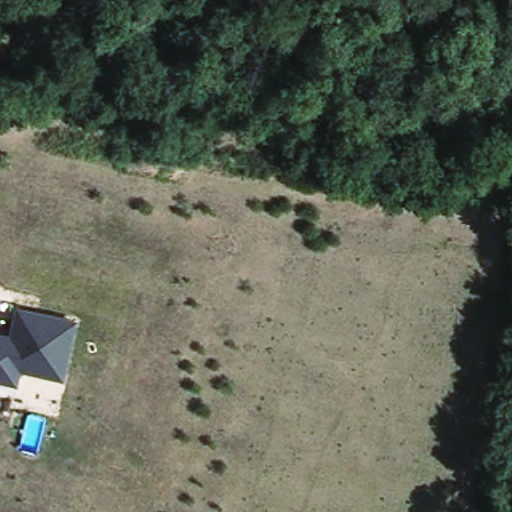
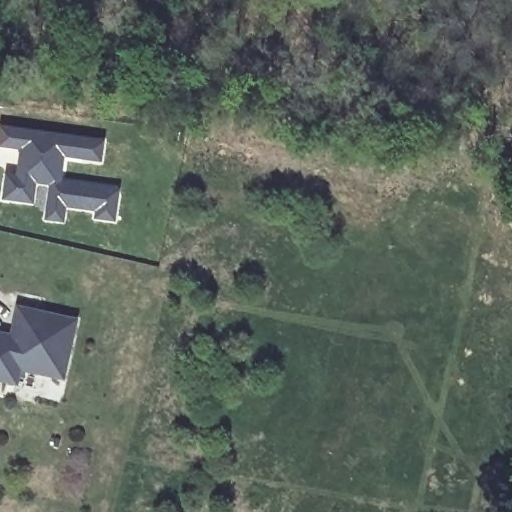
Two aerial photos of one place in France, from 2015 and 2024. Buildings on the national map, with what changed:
new [(102,163),(66,158),(63,177),(121,184),(116,223),(92,219),(92,212),(67,209),(65,224),(42,220),(44,208),(0,200),(7,162),(16,164),(19,150),(0,147),(0,123),(106,137),(102,163)]
unchanged [(0,330),(11,332),(17,303),(78,318),(66,379),(23,369),(20,385),(0,381),(0,330)]

